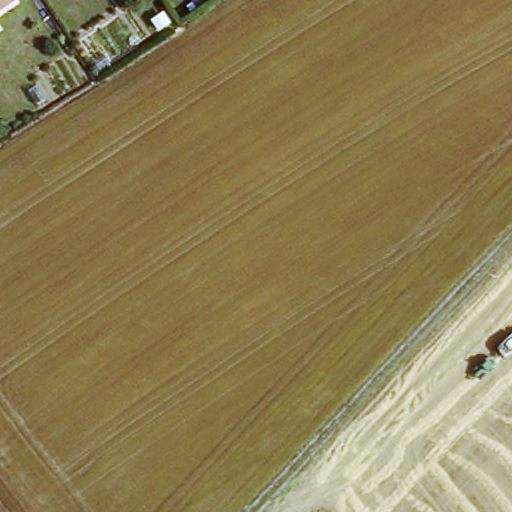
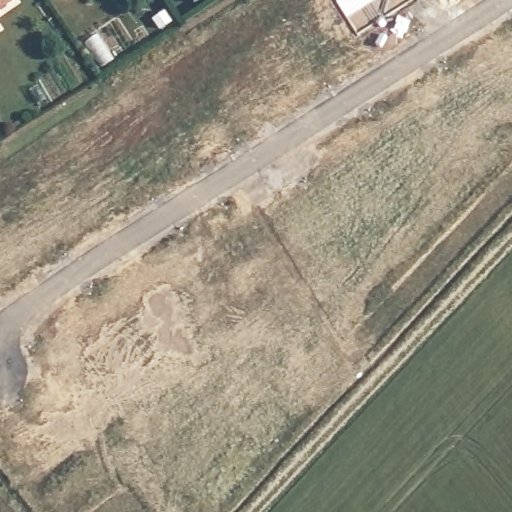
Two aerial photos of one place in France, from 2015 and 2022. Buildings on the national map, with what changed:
unchanged [(0,4),(0,0),(6,0),(0,4)]

